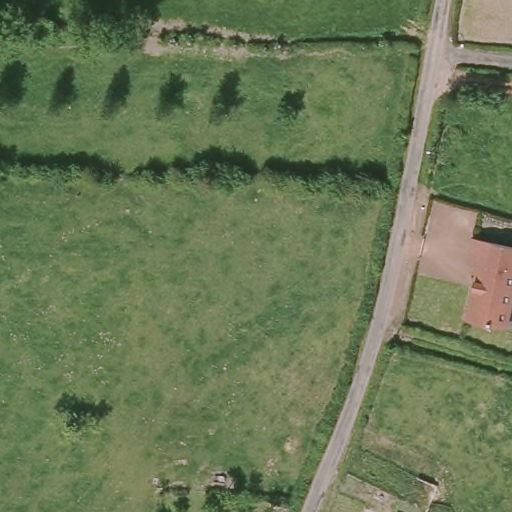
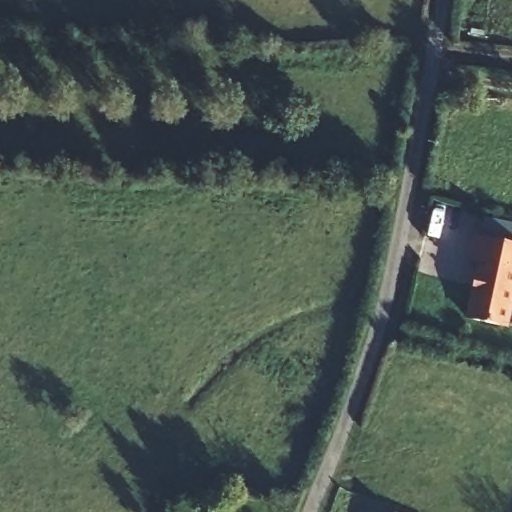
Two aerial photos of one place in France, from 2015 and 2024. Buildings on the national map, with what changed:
unchanged [(474,271),(464,268),(469,246),(512,256),(512,292),(501,337),(460,327),(474,271)]

